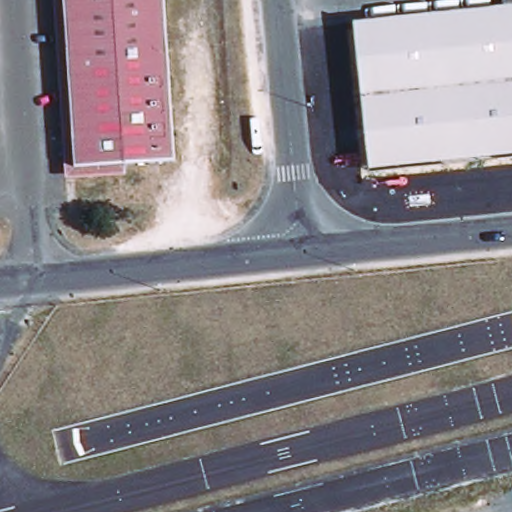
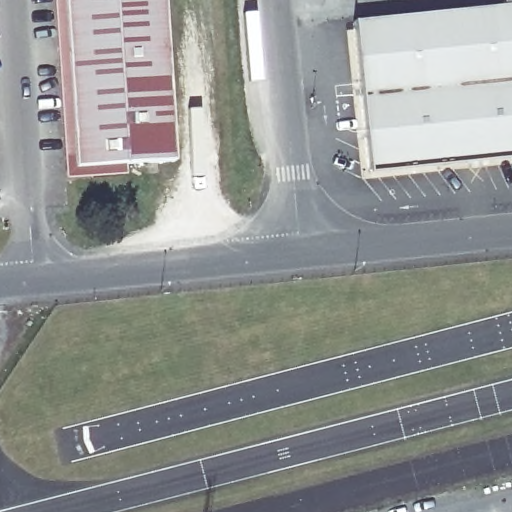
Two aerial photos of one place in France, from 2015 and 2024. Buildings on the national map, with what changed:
unchanged [(82,170),(70,0),(173,0),(182,165),(82,170)]
unchanged [(382,171),(367,22),(512,7),(512,157),(382,171)]

